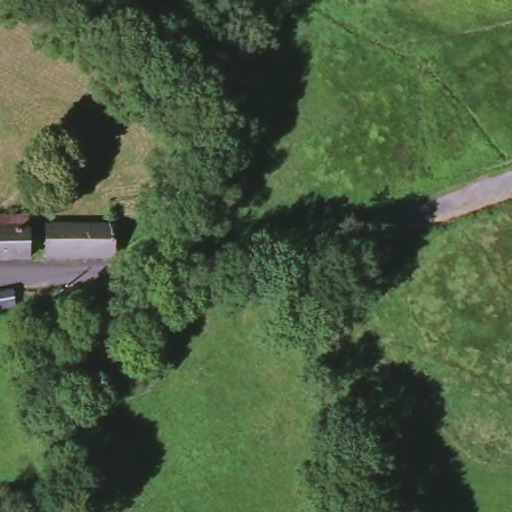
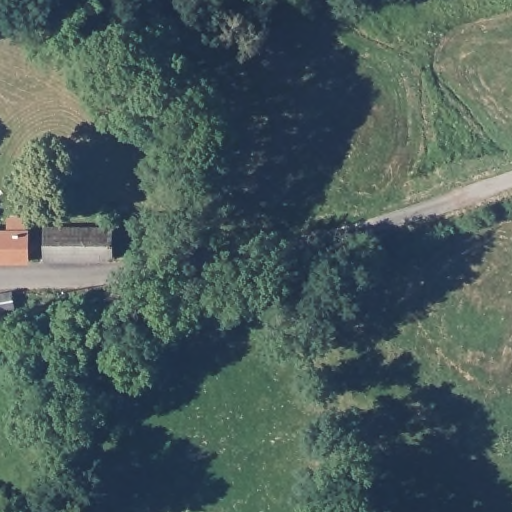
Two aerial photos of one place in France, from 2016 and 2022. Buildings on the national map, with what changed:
unchanged [(0,264),(0,231),(9,229),(8,217),(22,216),(24,230),(30,229),(31,262),(0,264)]
unchanged [(63,266),(63,232),(122,229),(122,220),(167,220),(167,251),(132,255),(132,261),(63,266)]

